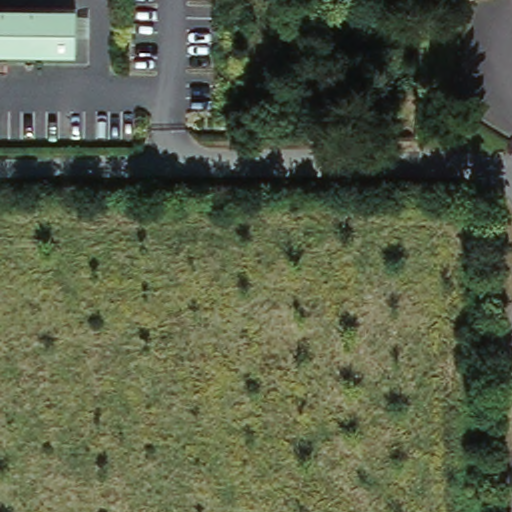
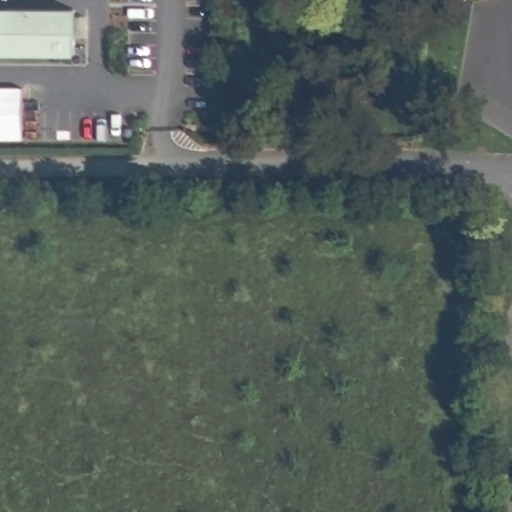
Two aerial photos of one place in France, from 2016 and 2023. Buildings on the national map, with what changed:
unchanged [(76,54),(0,54),(0,10),(75,10),(76,54)]
new [(0,89),(25,89),(25,139),(0,139),(0,89)]

